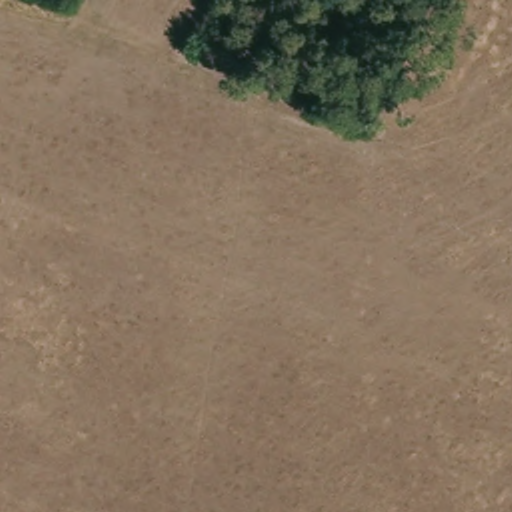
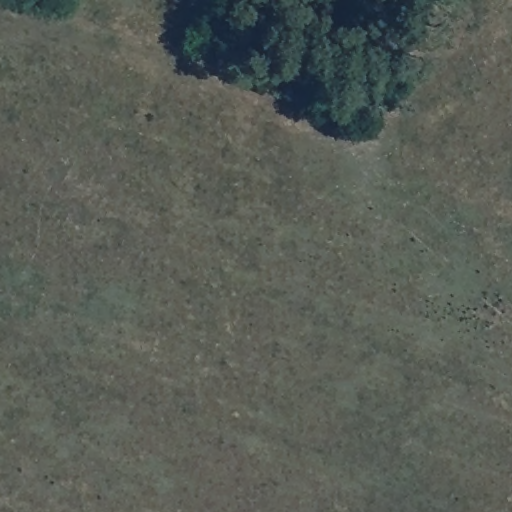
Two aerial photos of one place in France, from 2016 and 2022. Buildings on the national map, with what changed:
unchanged [(214,39),(223,42),(216,54),(209,51),(214,39)]

